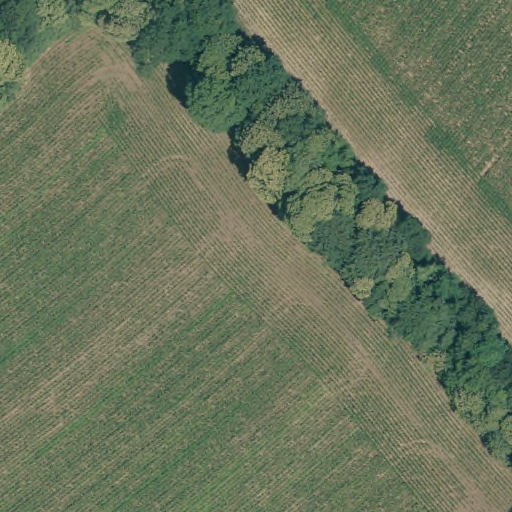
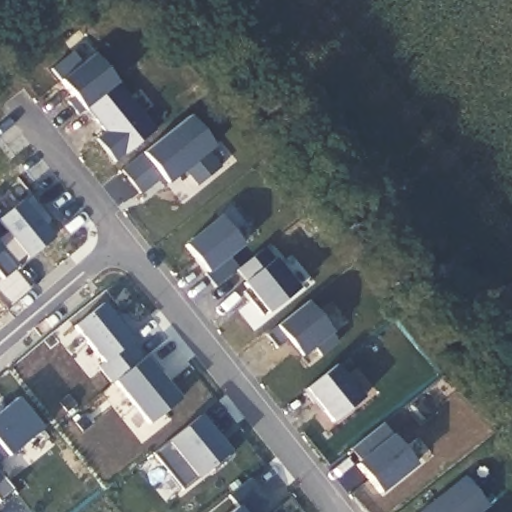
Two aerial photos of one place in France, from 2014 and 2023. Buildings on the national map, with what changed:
new [(71,53),(81,64),(93,55),(116,84),(85,109),(77,116),(67,103),(72,98),(50,70),(71,53)]
new [(116,84),(154,130),(114,163),(95,140),(104,133),(85,109),(116,84)]
new [(188,116),(212,147),(206,153),(219,169),(197,186),(184,169),(162,188),(157,180),(139,194),(120,171),(188,116)]
new [(0,229),(0,214),(26,193),(49,222),(39,229),(47,239),(23,258),(22,257),(10,265),(0,253),(0,231),(1,230),(0,229)]
new [(215,217),(237,244),(223,256),(233,269),(232,269),(210,287),(199,274),(201,272),(180,245),(215,217)]
new [(259,247),(293,289),(263,314),(261,312),(257,315),(243,299),(248,295),(238,283),(241,281),(233,269),(259,247)]
new [(12,268),(0,278),(0,253),(10,265),(12,268)]
new [(98,303),(115,324),(118,323),(130,338),(125,341),(138,358),(109,381),(107,383),(93,366),(98,362),(69,326),(98,303)]
new [(309,303),(333,334),(331,335),(338,343),(321,357),(314,349),(302,358),(289,342),(278,350),(267,337),(309,303)]
new [(138,358),(144,353),(159,371),(155,374),(175,399),(143,424),(109,381),(138,358)]
new [(338,367),(364,399),(334,424),(318,404),(316,406),(305,393),(338,367)]
new [(37,429),(0,459),(0,408),(12,398),(37,429)]
new [(194,416),(224,453),(222,454),(224,457),(208,471),(205,468),(177,491),(148,453),(194,416)]
new [(384,425),(416,466),(380,494),(358,467),(362,464),(351,451),(384,425)]
new [(0,497),(0,478),(9,489),(0,497)]
new [(467,478),(489,506),(482,512),(424,512),(467,478)]
new [(232,507),(223,495),(244,479),(263,502),(250,512),(226,512),(232,507)]

